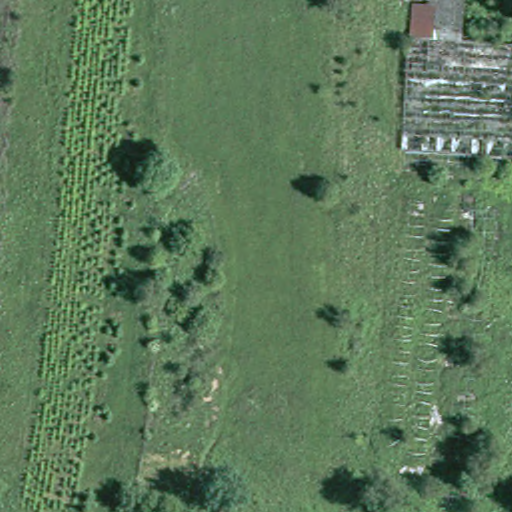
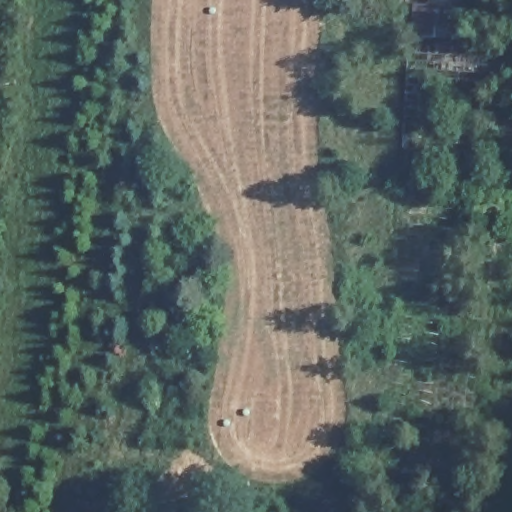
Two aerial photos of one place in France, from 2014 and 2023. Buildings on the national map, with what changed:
unchanged [(415,37),(416,0),(470,0),(469,40),(415,37)]
unchanged [(512,42),(512,154),(409,149),(415,37),(469,40),(512,42)]

